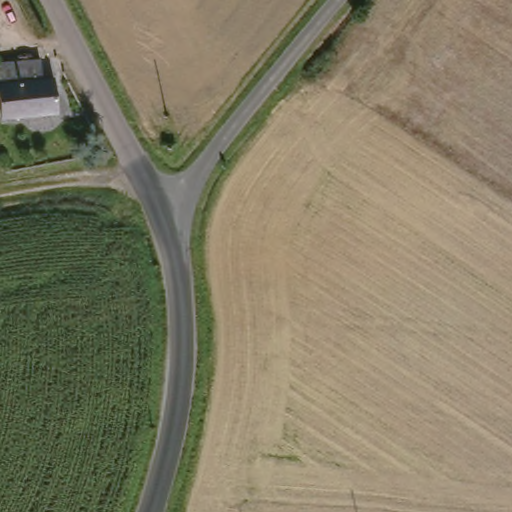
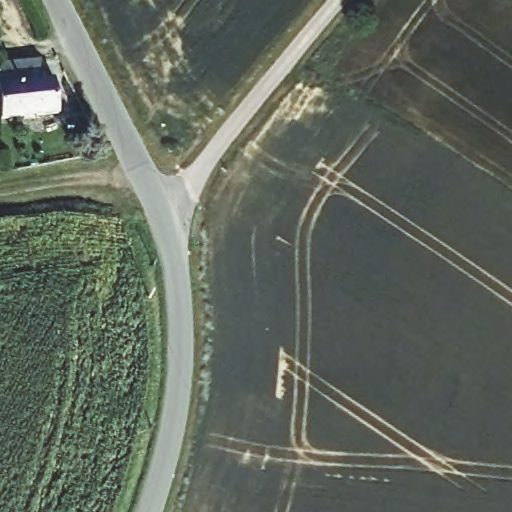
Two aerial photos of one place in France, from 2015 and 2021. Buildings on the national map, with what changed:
unchanged [(0,116),(0,64),(34,60),(36,81),(50,80),(55,110),(0,116)]

